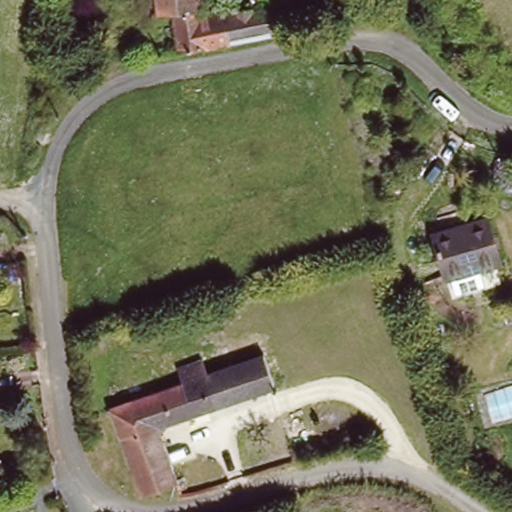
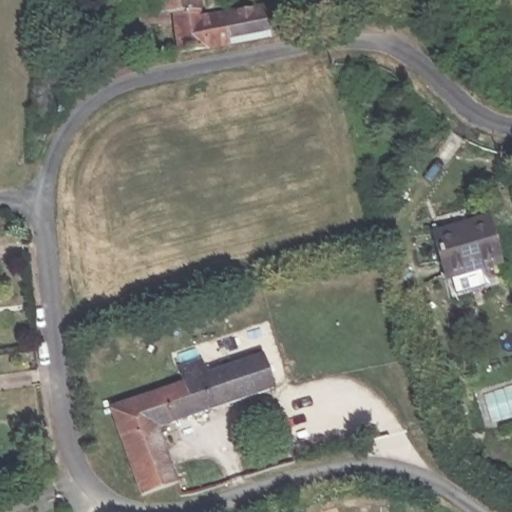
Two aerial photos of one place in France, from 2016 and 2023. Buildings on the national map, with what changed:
unchanged [(284,3),(287,35),(175,53),(170,13),(155,15),(153,0),(196,0),(197,15),(284,3)]
unchanged [(437,237),(489,220),(502,265),(451,281),(437,237)]
unchanged [(112,415),(180,389),(175,375),(211,362),(216,375),(257,361),(267,391),(157,433),(177,488),(143,501),(112,415)]

